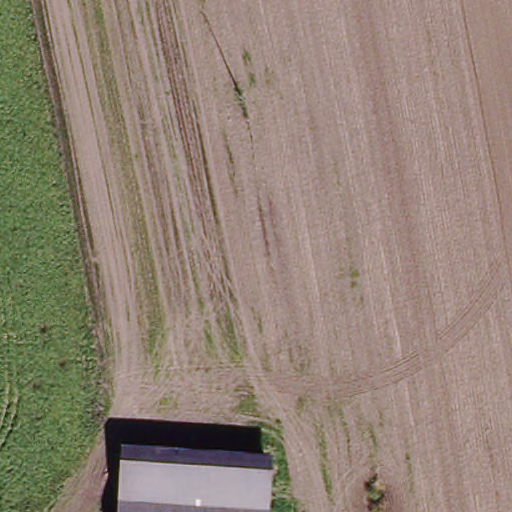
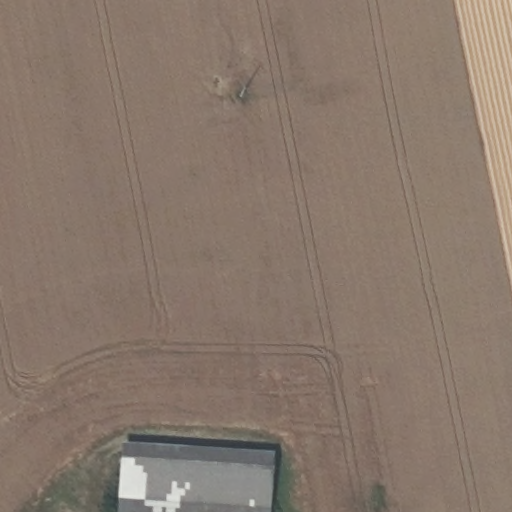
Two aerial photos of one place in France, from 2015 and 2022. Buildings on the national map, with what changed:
unchanged [(120,504),(124,464),(280,475),(277,512),(119,512),(120,504)]

